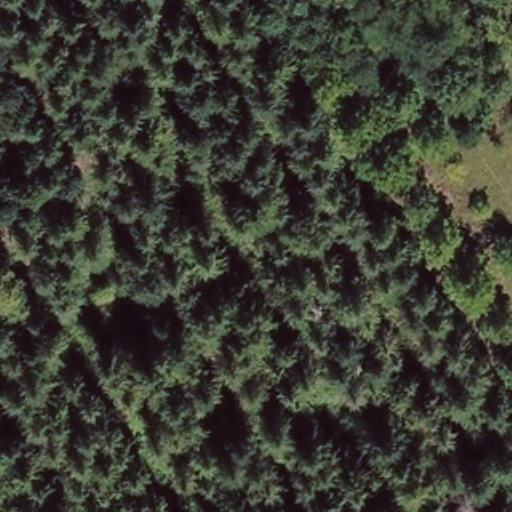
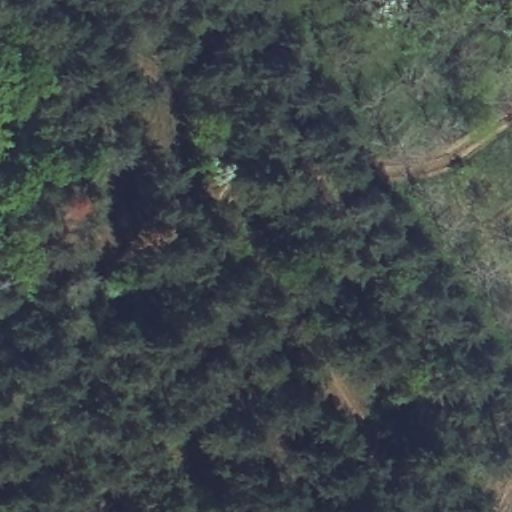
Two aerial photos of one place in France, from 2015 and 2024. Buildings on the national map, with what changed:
[]

